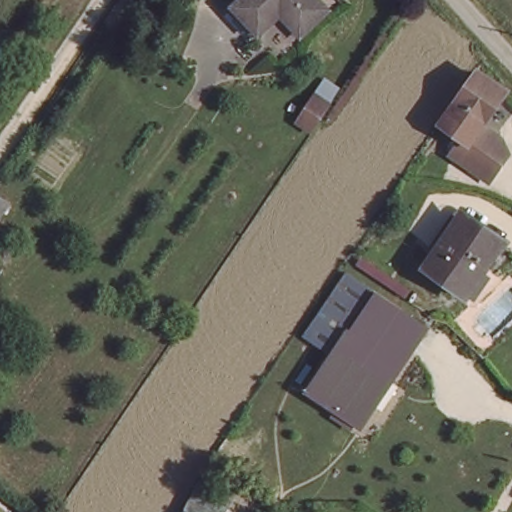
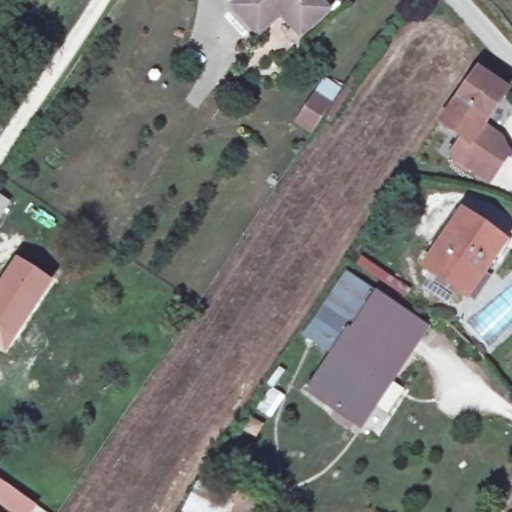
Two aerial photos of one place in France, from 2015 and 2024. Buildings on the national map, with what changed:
unchanged [(326,12),(302,37),(283,16),(260,38),(236,12),(249,0),(314,0),(326,12)]
unchanged [(502,88),(481,118),(497,129),(486,144),(501,156),(487,177),(448,152),(458,136),(439,123),(475,69),(502,88)]
unchanged [(10,202),(0,220),(0,195),(10,202)]
unchanged [(497,242),(464,291),(425,266),(457,216),(497,242)]
new [(15,257),(53,281),(5,353),(0,350),(0,280),(15,257)]
unchanged [(396,297),(431,320),(365,422),(330,399),(310,386),(335,350),(308,332),(352,269),(396,297)]

